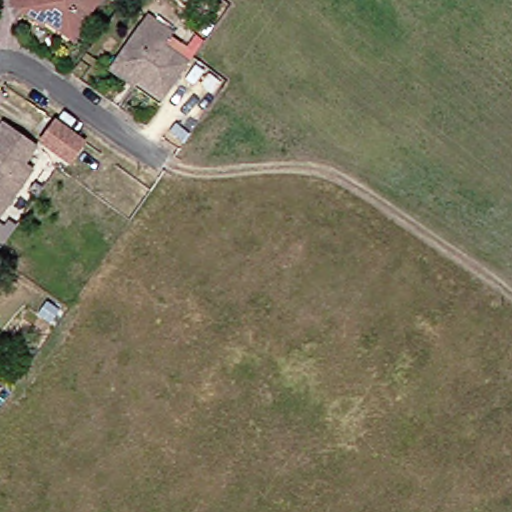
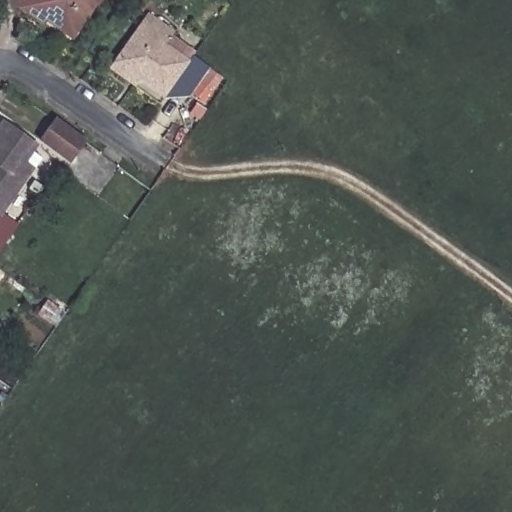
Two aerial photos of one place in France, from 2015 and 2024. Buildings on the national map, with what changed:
unchanged [(24,19),(8,8),(14,0),(101,0),(72,43),(45,25),(40,30),(24,19)]
unchanged [(156,97),(110,65),(145,15),(169,32),(159,47),(180,62),(156,97)]
unchanged [(70,165),(64,160),(42,144),(56,124),(79,140),(85,144),(70,165)]
unchanged [(6,125),(36,146),(14,179),(22,186),(0,217),(0,134),(6,125)]
unchanged [(5,229),(10,222),(16,227),(18,228),(0,254),(0,226),(5,229)]

